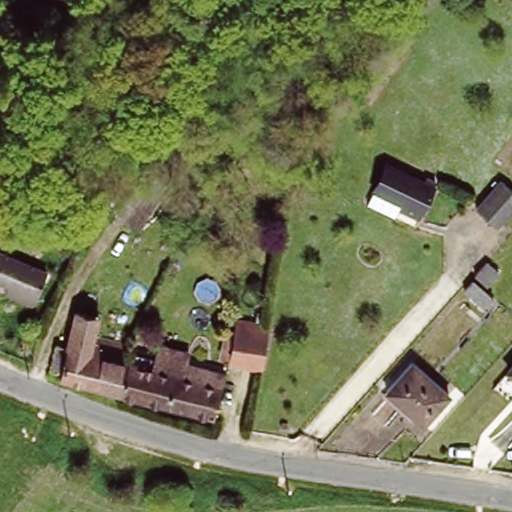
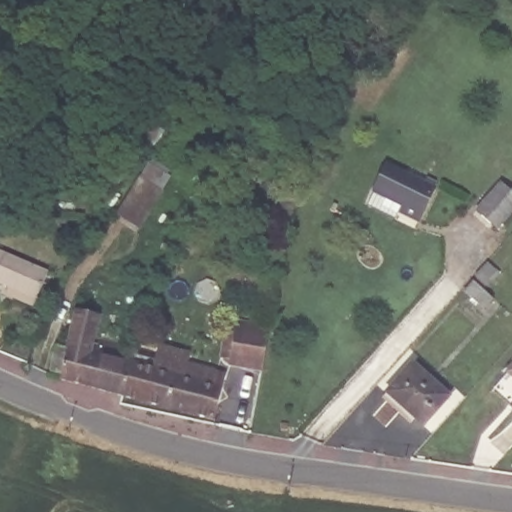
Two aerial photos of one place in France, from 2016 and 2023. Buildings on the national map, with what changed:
unchanged [(370,199),(377,184),(390,160),(437,184),(422,214),(406,206),(402,215),(370,199)]
unchanged [(500,177),(512,188),(512,202),(493,223),(474,206),(500,177)]
unchanged [(119,212),(142,178),(165,192),(141,227),(119,212)]
unchanged [(70,244),(54,243),(55,229),(72,230),(70,244)]
unchanged [(11,289),(15,279),(0,273),(0,246),(50,268),(41,290),(37,299),(11,289)]
unchanged [(487,262),(499,272),(487,287),(474,275),(487,262)]
unchanged [(485,289),(496,299),(488,309),(467,292),(476,282),(485,289)]
unchanged [(263,368),(230,362),(237,324),(270,330),(263,368)]
unchanged [(122,394),(60,378),(62,372),(52,369),(58,346),(68,348),(73,329),(95,335),(90,353),(95,354),(100,338),(133,346),(122,394)]
unchanged [(214,419),(122,394),(133,346),(158,352),(160,345),(190,353),(187,365),(226,376),(214,419)]
unchanged [(390,393),(415,364),(452,396),(426,424),(390,393)]
unchanged [(512,369),(510,368),(512,366),(512,369)]

